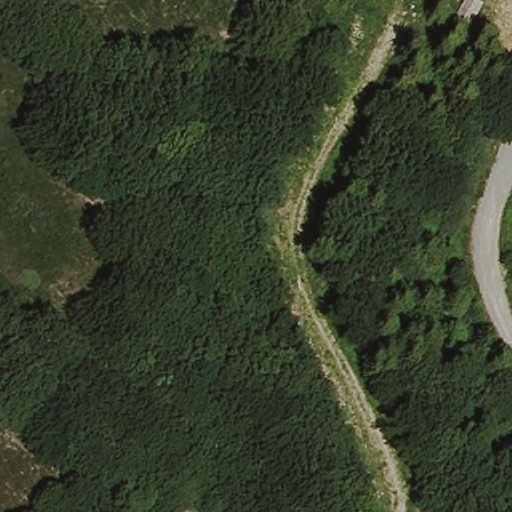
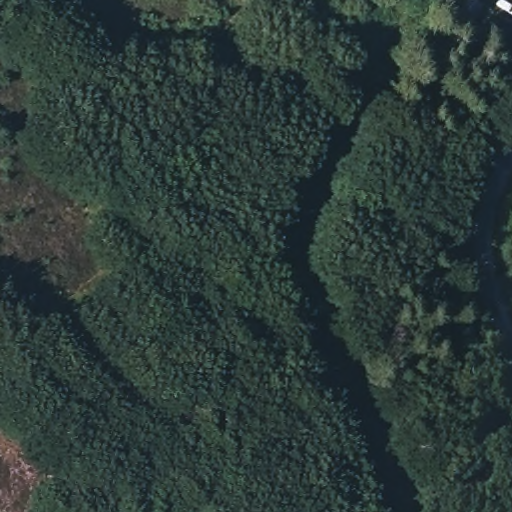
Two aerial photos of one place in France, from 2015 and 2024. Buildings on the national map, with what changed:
[]

